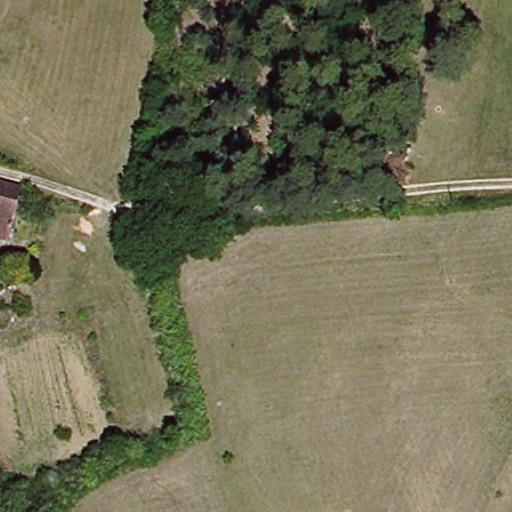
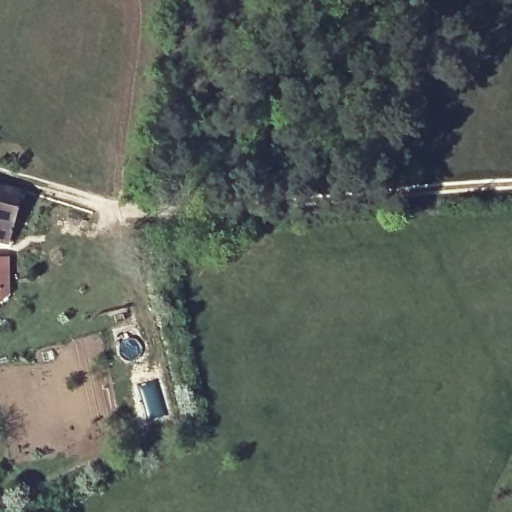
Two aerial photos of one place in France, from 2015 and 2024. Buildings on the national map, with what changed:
unchanged [(18,193),(5,246),(0,245),(0,188),(18,193)]
new [(9,256),(10,305),(0,305),(0,257),(9,256)]

